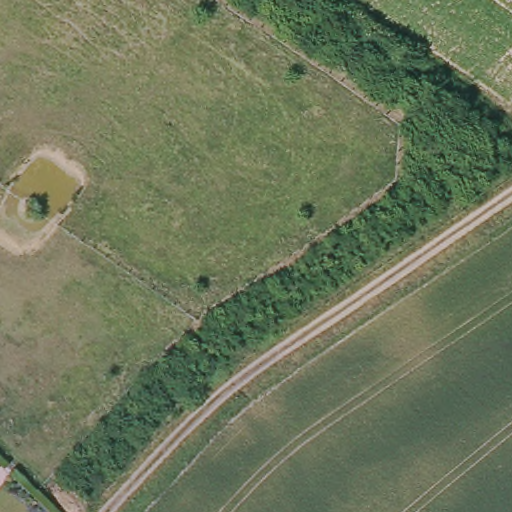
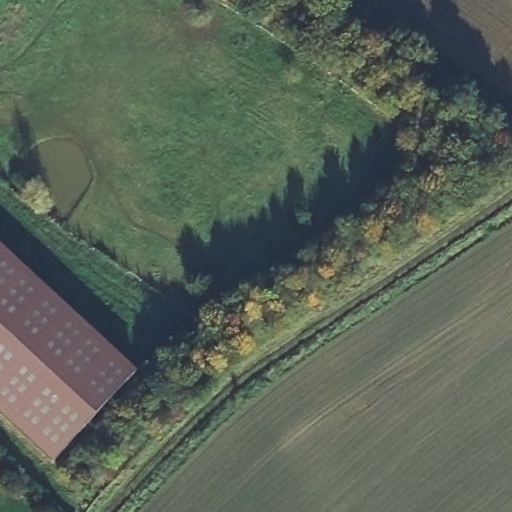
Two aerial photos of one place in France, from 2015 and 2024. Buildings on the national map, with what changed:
new [(0,247),(135,372),(122,387),(112,379),(102,391),(112,400),(52,465),(0,417),(0,247)]

